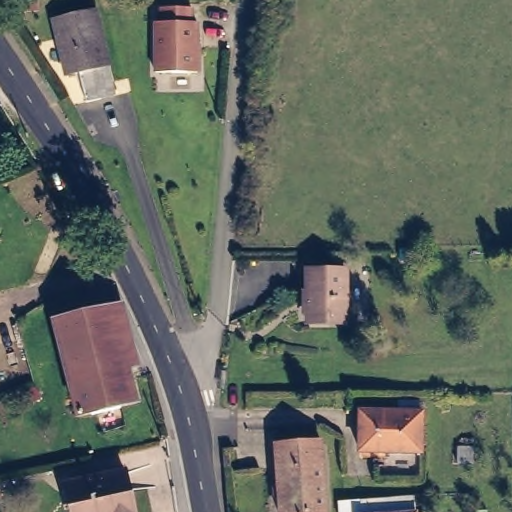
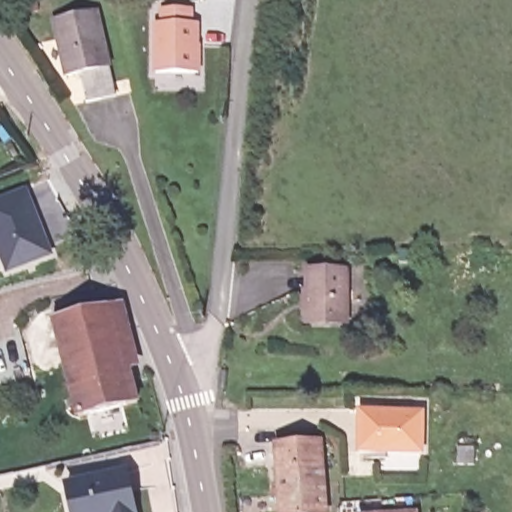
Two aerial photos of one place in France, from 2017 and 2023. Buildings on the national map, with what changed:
unchanged [(193,10),(193,24),(198,24),(198,74),(156,74),(156,24),(162,24),(162,10),(193,10)]
unchanged [(101,11),(121,97),(91,104),(84,76),(73,77),(58,20),(101,11)]
new [(23,192),(48,256),(4,273),(0,263),(0,201),(23,192)]
unchanged [(307,325),(307,319),(308,271),(346,272),(345,320),(345,326),(307,325)]
unchanged [(59,320),(118,306),(143,405),(83,420),(59,320)]
unchanged [(427,414),(427,452),(374,452),(364,452),(366,412),(373,412),(427,414)]
unchanged [(326,442),(331,512),(287,512),(281,445),(326,442)]
unchanged [(474,465),(457,464),(457,448),(474,448),(474,465)]
unchanged [(131,473),(139,512),(76,512),(71,485),(131,473)]
unchanged [(361,508),(371,508),(414,506),(415,512),(361,512),(361,508)]

